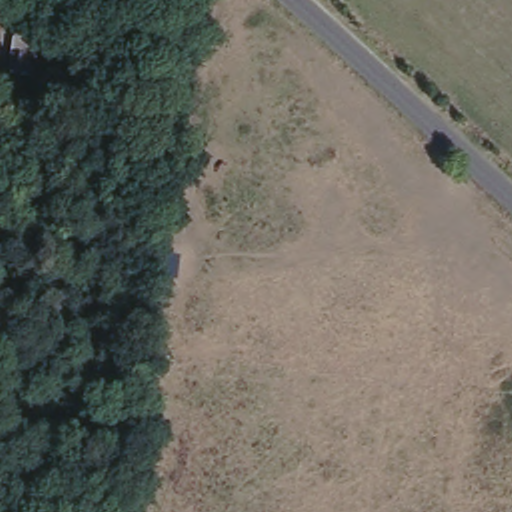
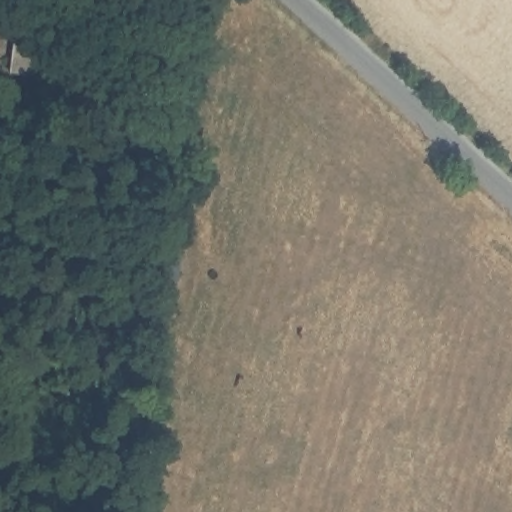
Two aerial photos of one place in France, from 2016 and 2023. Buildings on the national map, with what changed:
unchanged [(10,31),(39,36),(35,72),(5,73),(10,31)]

